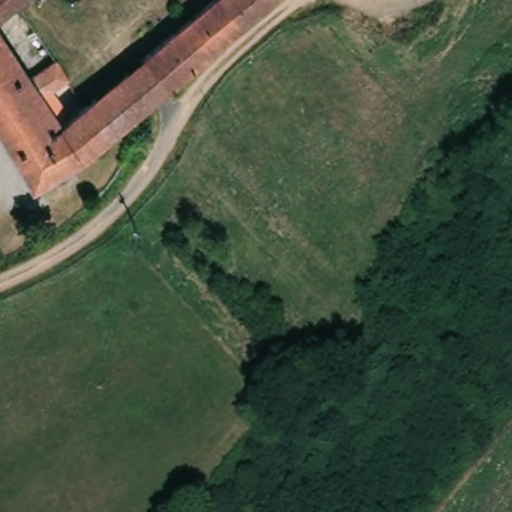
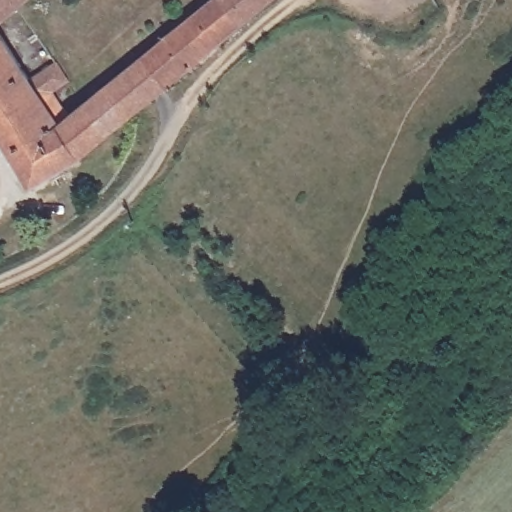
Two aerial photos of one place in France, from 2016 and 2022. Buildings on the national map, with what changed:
unchanged [(0,21),(0,0),(23,0),(0,21)]
unchanged [(215,0),(281,0),(230,41),(216,52),(150,104),(143,110),(137,115),(135,112),(121,96),(110,82),(215,0)]
unchanged [(55,57),(67,73),(43,92),(64,120),(87,152),(34,192),(0,146),(0,34),(30,76),(55,57)]
unchanged [(110,82),(121,96),(135,112),(137,115),(132,119),(87,152),(64,120),(110,82)]

